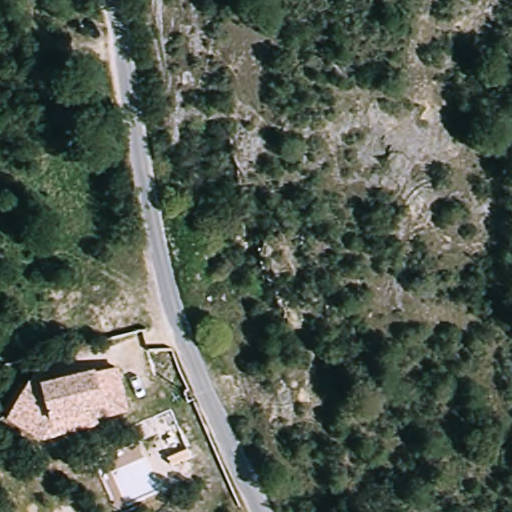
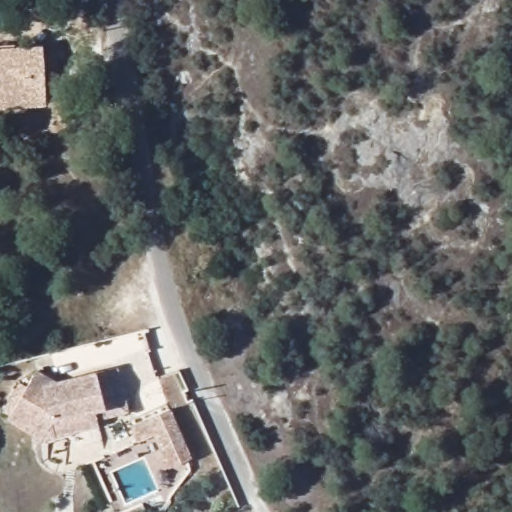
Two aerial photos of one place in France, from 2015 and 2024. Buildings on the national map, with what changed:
new [(0,47),(42,45),(46,107),(0,110),(0,47)]
unchanged [(59,440),(43,445),(5,425),(31,377),(51,387),(110,367),(125,409),(96,419),(98,426),(59,440)]
new [(179,465),(174,457),(161,434),(144,444),(136,429),(172,408),(194,447),(198,453),(179,465)]

